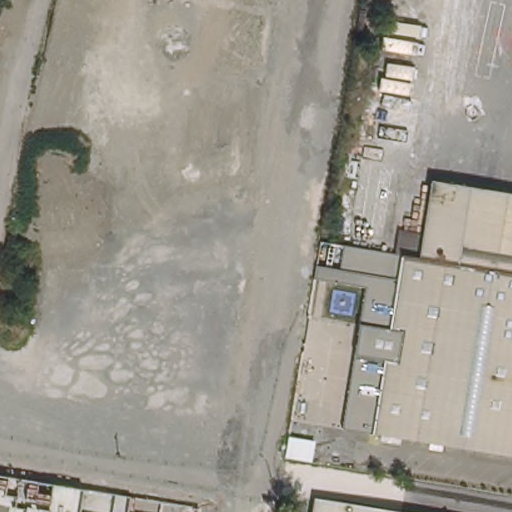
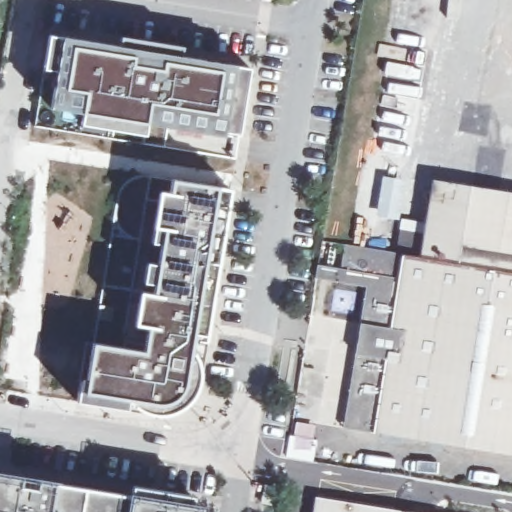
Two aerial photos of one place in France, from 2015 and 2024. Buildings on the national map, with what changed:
demolished [(2,27),(0,41),(0,27),(2,27)]
new [(89,125),(91,113),(60,109),(66,70),(53,67),(58,36),(72,37),(243,67),(233,137),(156,124),(139,121),(137,132),(89,125)]
new [(118,196),(121,189),(127,184),(133,180),(142,177),(152,177),(170,180),(168,193),(159,192),(158,202),(146,200),(122,347),(95,342),(118,196)]
new [(88,380),(95,342),(122,347),(144,351),(148,327),(135,326),(140,293),(153,295),(163,230),(154,228),(158,202),(159,192),(168,193),(170,180),(216,187),(230,190),(199,367),(199,377),(198,386),(194,396),(187,405),(177,412),(169,414),(158,416),(148,414),(139,411),(126,409),(77,402),(80,378),(88,380)]
unchanged [(404,254),(407,232),(426,235),(434,182),(512,194),(512,271),(406,254),(404,254)]
unchanged [(319,284),(324,244),(404,260),(397,297),(319,284)]
unchanged [(382,401),(406,254),(512,271),(512,455),(377,433),(382,401)]
unchanged [(374,431),(347,424),(359,357),(386,363),(374,431)]
new [(83,490),(115,494),(129,495),(134,487),(194,496),(190,508),(201,510),(200,512),(0,512),(0,475),(53,483),(83,490)]
unchanged [(322,498),(405,512),(320,512),(322,498)]

